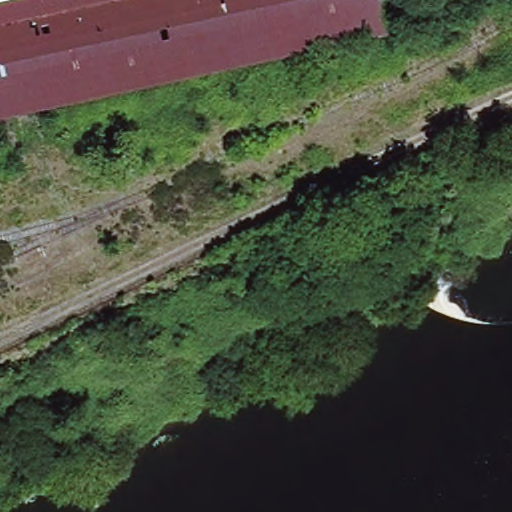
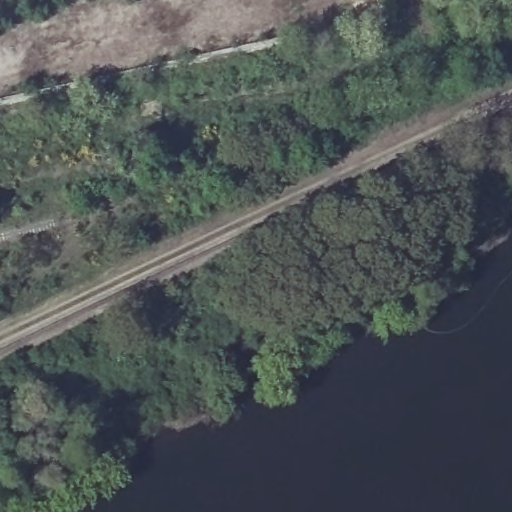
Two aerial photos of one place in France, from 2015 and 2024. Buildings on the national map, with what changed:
demolished [(0,116),(0,0),(383,0),(390,31),(0,116)]

